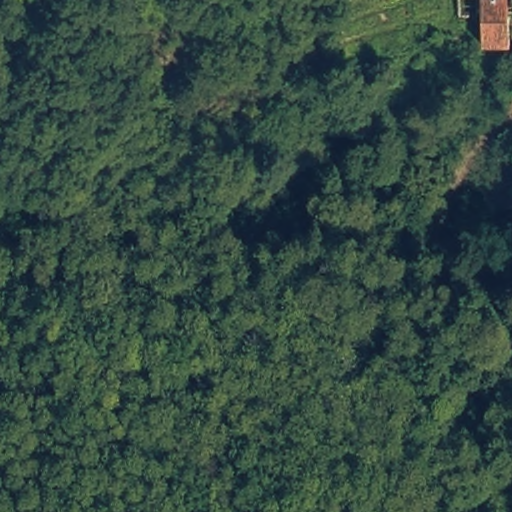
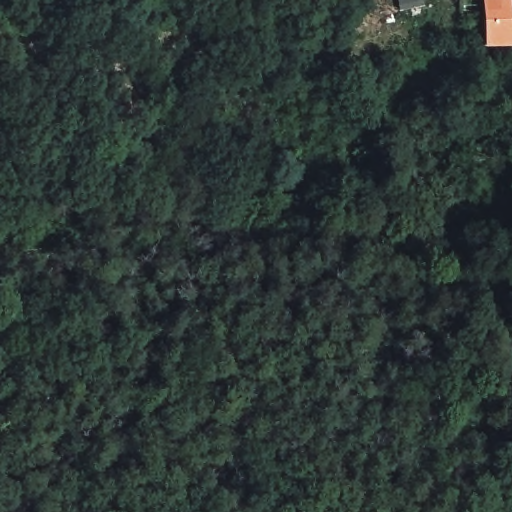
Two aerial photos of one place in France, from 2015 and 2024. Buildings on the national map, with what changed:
unchanged [(512,0),(512,54),(487,55),(485,0),(512,0)]

